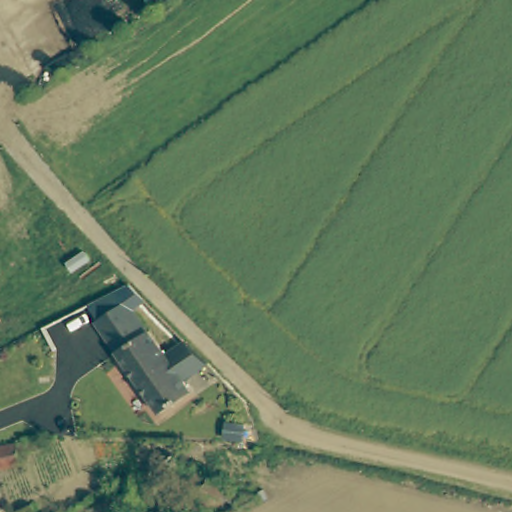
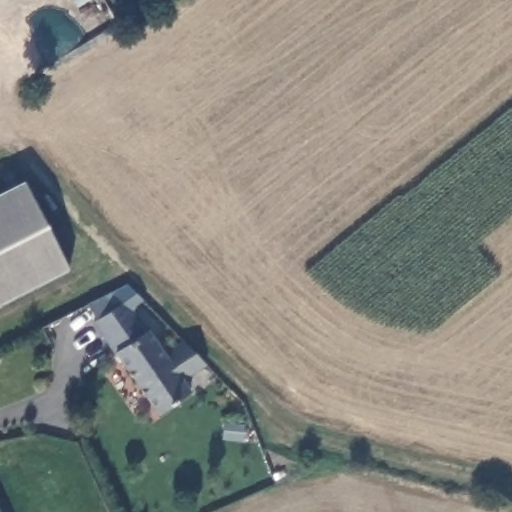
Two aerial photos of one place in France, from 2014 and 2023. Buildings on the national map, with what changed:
new [(24,180),(70,269),(0,305),(0,193),(24,180)]
unchanged [(193,346),(214,369),(189,386),(198,399),(170,417),(167,416),(105,327),(109,324),(104,316),(98,308),(121,296),(124,300),(128,297),(154,335),(171,362),(193,346)]
unchanged [(17,461),(0,468),(0,452),(12,447),(17,461)]

